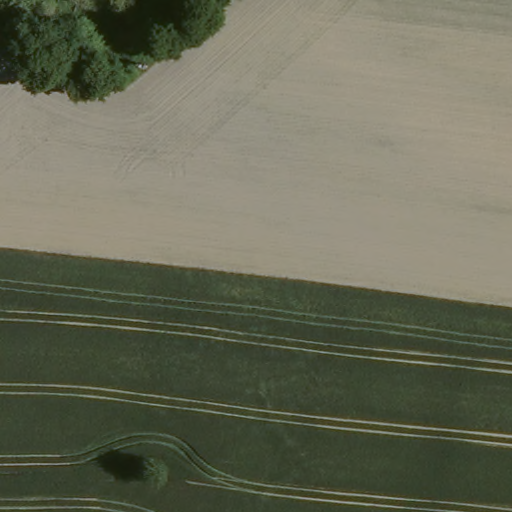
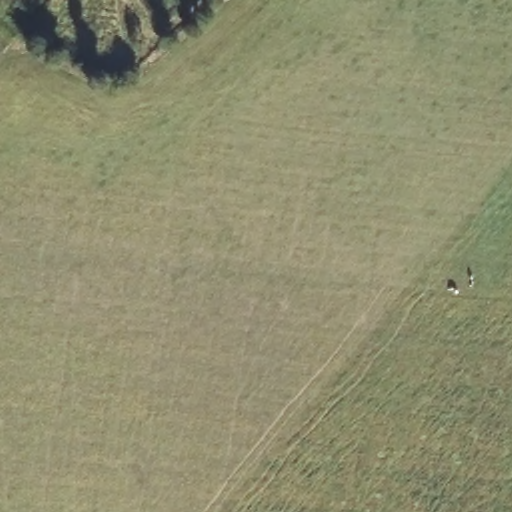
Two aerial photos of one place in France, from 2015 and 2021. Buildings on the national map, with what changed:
[]

